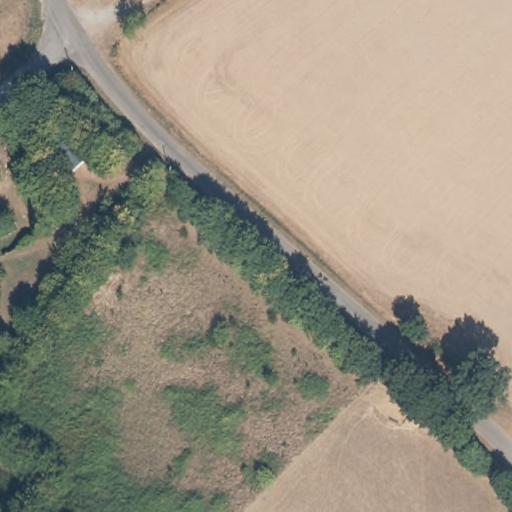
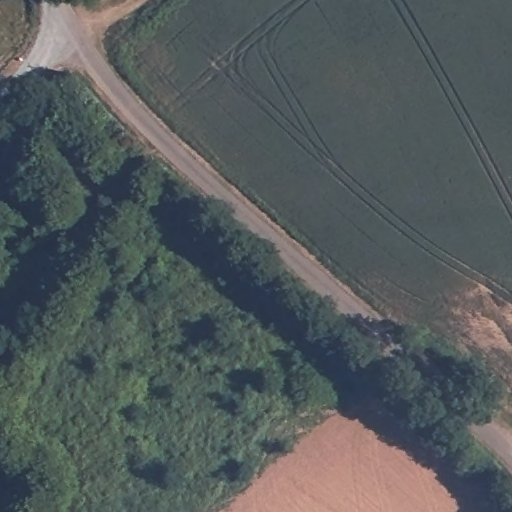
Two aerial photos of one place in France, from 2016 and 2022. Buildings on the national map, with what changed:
unchanged [(9,160),(1,165),(5,173),(0,176),(0,135),(9,160)]

